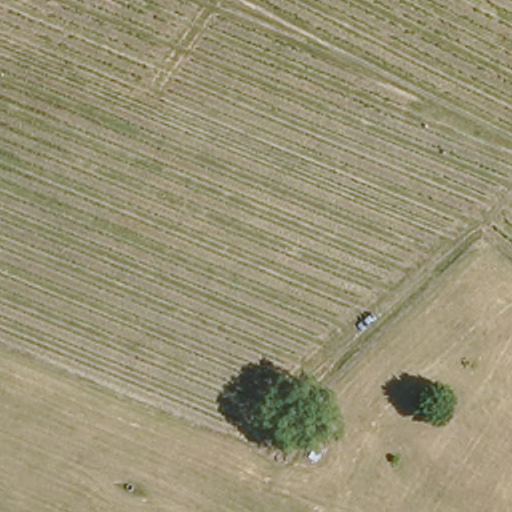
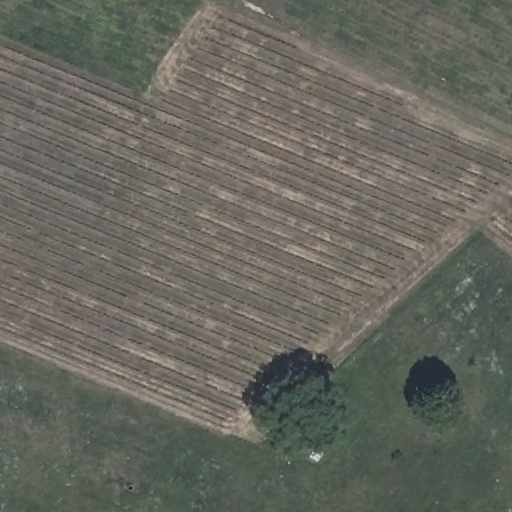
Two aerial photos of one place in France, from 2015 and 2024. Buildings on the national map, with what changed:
[]

